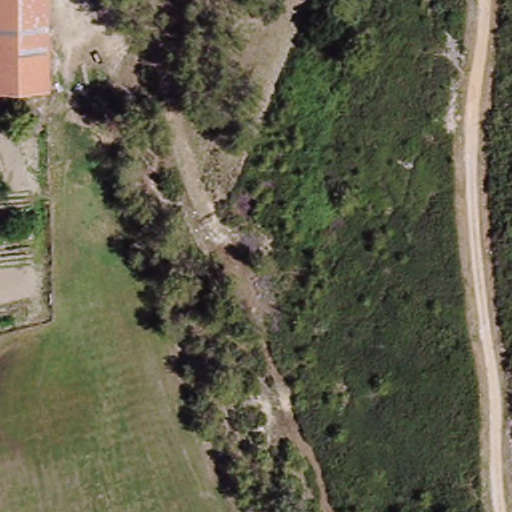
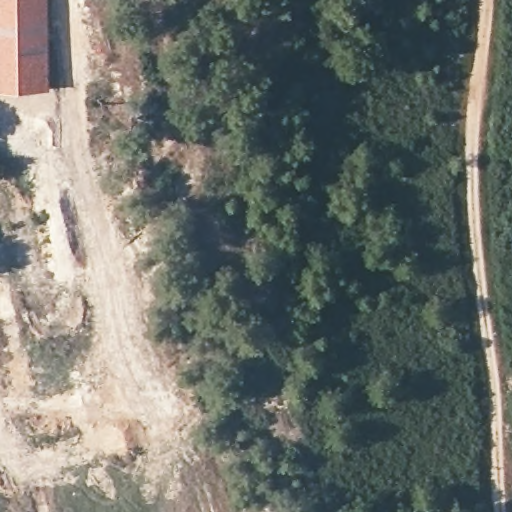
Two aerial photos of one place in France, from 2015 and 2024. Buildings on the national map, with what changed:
unchanged [(0,93),(0,0),(56,0),(54,95),(0,93)]

